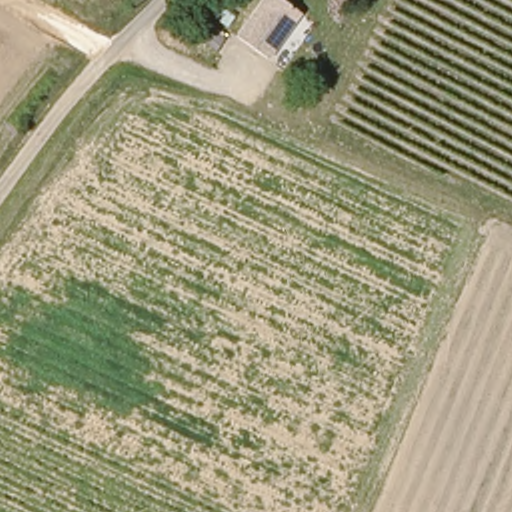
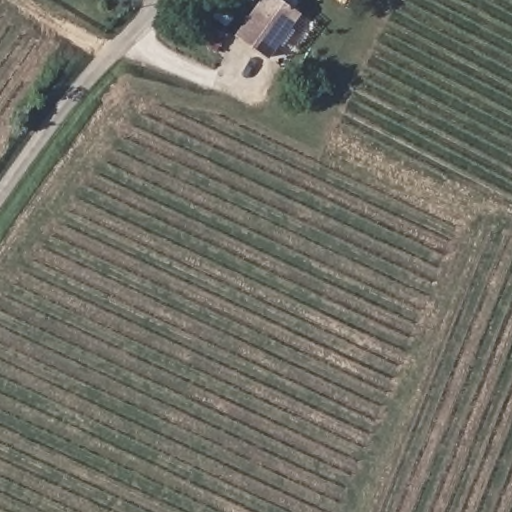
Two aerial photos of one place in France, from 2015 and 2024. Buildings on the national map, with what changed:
unchanged [(237,34),(261,0),(286,0),(302,14),(271,58),(237,34)]

